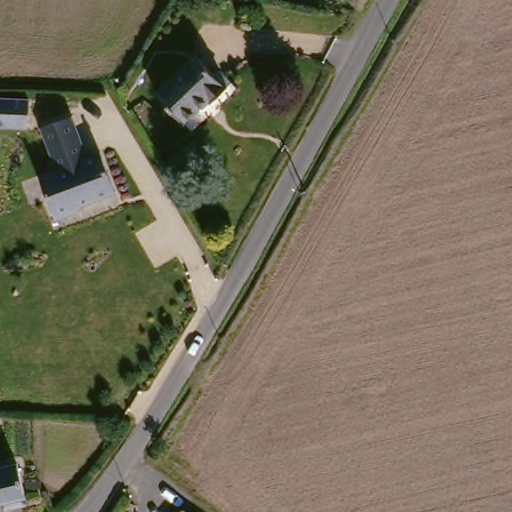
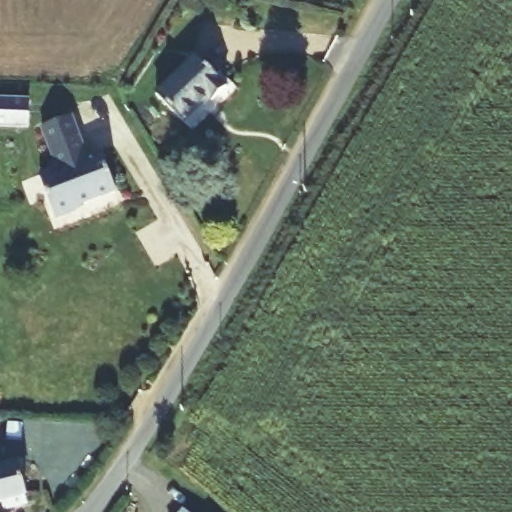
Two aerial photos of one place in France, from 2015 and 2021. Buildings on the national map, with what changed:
unchanged [(152,93),(191,55),(221,86),(208,100),(204,97),(179,121),(152,93)]
unchanged [(0,97),(28,98),(28,123),(0,122),(0,97)]
unchanged [(78,201),(80,205),(60,212),(44,169),(61,162),(46,122),(76,110),(91,151),(105,146),(120,186),(78,201)]
unchanged [(22,504),(0,509),(0,465),(13,462),(21,496),(22,504)]
unchanged [(185,512),(182,512),(183,511),(185,512)]

